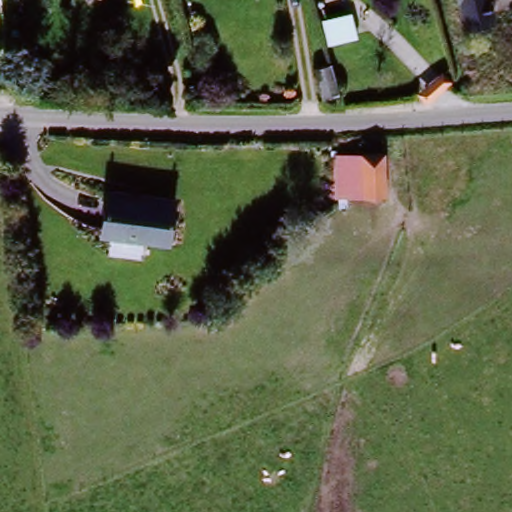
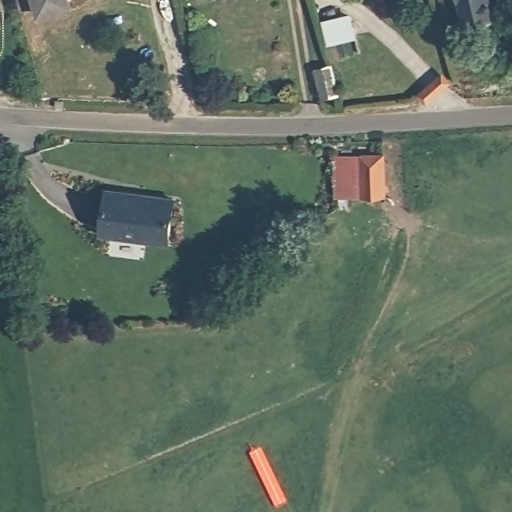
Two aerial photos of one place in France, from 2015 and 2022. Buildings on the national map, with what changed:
unchanged [(0,4),(0,0),(2,4),(0,4)]
unchanged [(463,0),(468,0),(463,1),(463,0)]
unchanged [(335,73),(345,103),(327,106),(318,76),(335,73)]
unchanged [(385,195),(316,194),(317,158),(385,155),(385,195)]
unchanged [(104,195),(168,194),(170,237),(105,239),(104,195)]

